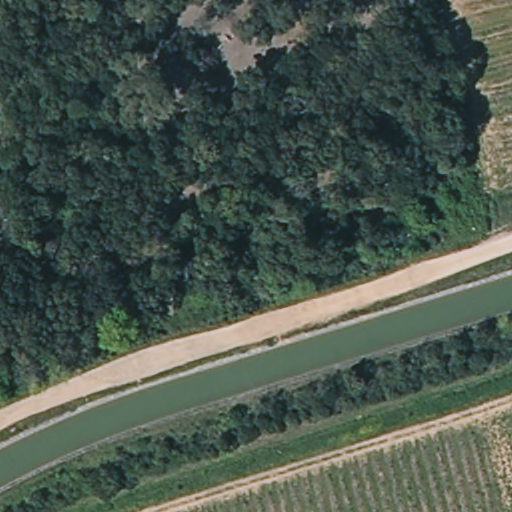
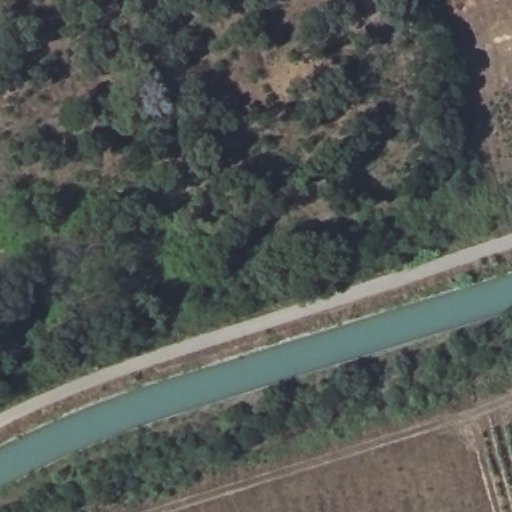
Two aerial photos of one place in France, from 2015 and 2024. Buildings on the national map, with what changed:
[]

